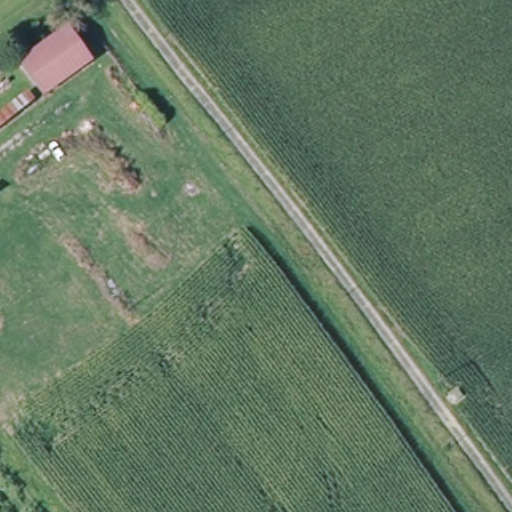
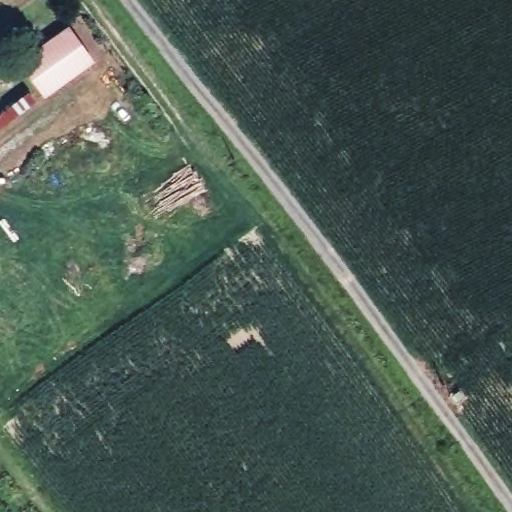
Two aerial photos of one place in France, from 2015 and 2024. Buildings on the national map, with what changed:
unchanged [(69,22),(97,61),(46,99),(17,59),(69,22)]

